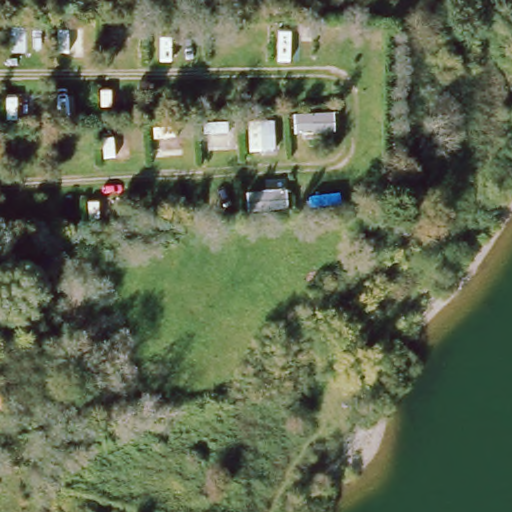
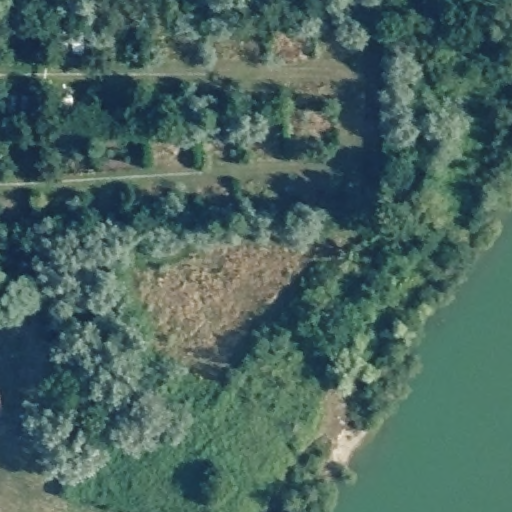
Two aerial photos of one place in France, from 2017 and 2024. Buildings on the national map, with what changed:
unchanged [(0,412),(0,404),(1,412),(0,412)]

